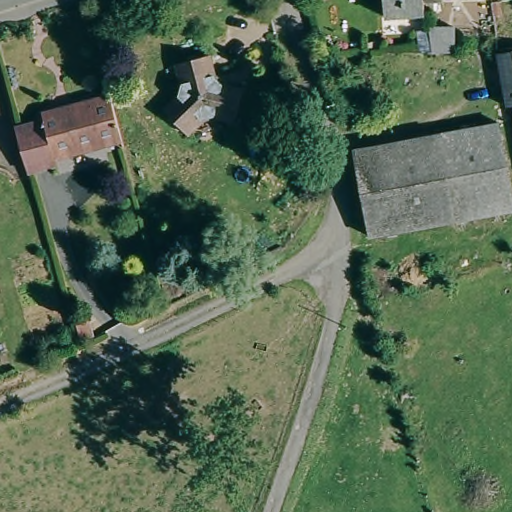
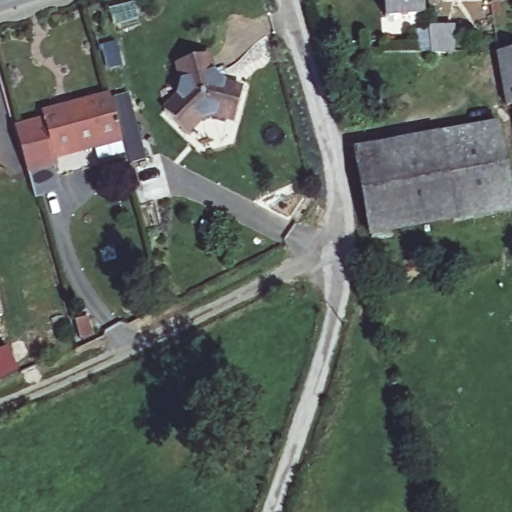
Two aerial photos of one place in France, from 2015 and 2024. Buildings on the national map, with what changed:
unchanged [(428,0),(429,13),(421,13),(421,16),(384,17),(383,0),(428,0)]
unchanged [(429,31),(429,29),(473,29),(474,51),(431,51),(419,51),(419,32),(429,31)]
unchanged [(175,93),(181,76),(173,56),(205,45),(213,70),(221,83),(241,89),(234,119),(214,113),(203,115),(189,129),(163,109),(163,106),(175,93)]
unchanged [(512,106),(508,106),(498,56),(512,53),(512,106)]
unchanged [(41,119),(108,96),(118,128),(123,143),(58,166),(43,126),(41,119)]
unchanged [(512,198),(512,210),(449,221),(434,133),(497,122),(512,198)]
unchanged [(43,126),(58,166),(59,171),(29,181),(25,167),(15,136),(43,126)]
unchanged [(434,133),(449,221),(358,236),(349,148),(434,133)]
unchanged [(88,316),(93,334),(83,337),(78,319),(88,316)]

